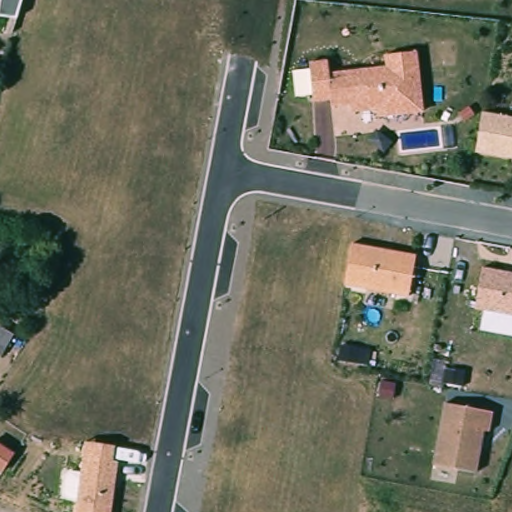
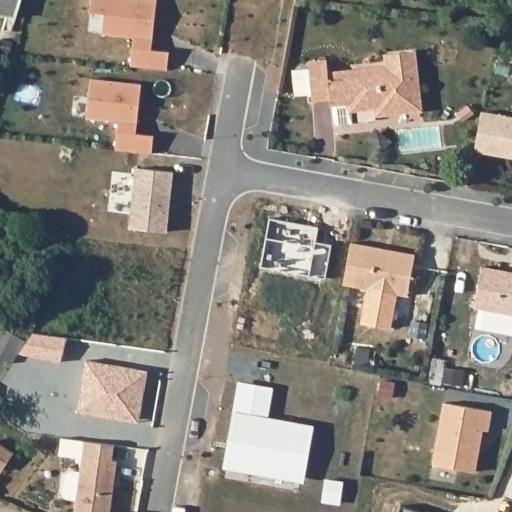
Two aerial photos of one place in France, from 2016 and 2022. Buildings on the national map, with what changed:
unchanged [(12,18),(0,16),(0,0),(16,0),(12,18)]
new [(131,65),(135,35),(103,32),(105,12),(90,11),(91,0),(155,0),(152,49),(170,51),(168,69),(131,65)]
unchanged [(377,109),(351,112),(350,103),(331,105),(330,99),(313,101),(309,61),(329,60),(329,71),(384,66),(383,54),(418,51),(424,110),(378,116),(377,109)]
new [(153,152),(117,149),(119,120),(88,117),(92,79),(141,84),(137,133),(154,134),(153,152)]
unchanged [(512,158),(476,153),(482,113),(512,117),(512,158)]
new [(131,167),(168,169),(164,229),(126,226),(131,167)]
unchanged [(417,256),(413,298),(343,284),(352,244),(417,256)]
unchanged [(512,274),(512,315),(475,308),(482,268),(512,274)]
unchanged [(12,333),(0,352),(0,325),(12,333)]
new [(274,387),(270,417),(315,424),(305,482),(223,468),(238,381),(255,374),(274,387)]
unchanged [(495,410),(492,434),(486,433),(478,474),(432,462),(443,405),(495,410)]
unchanged [(13,452),(2,468),(0,466),(0,443),(13,452)]
unchanged [(116,448),(114,460),(120,462),(112,512),(75,512),(85,443),(116,448)]

